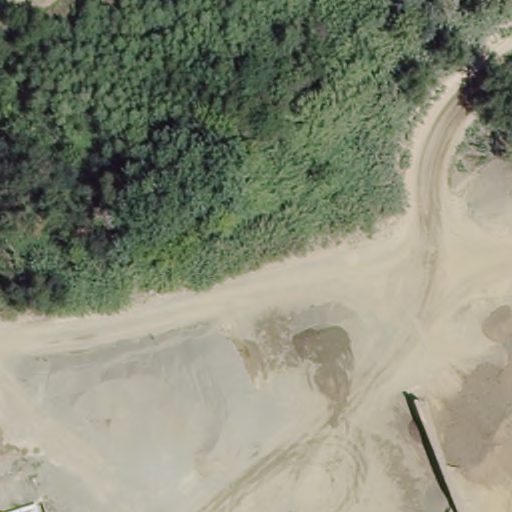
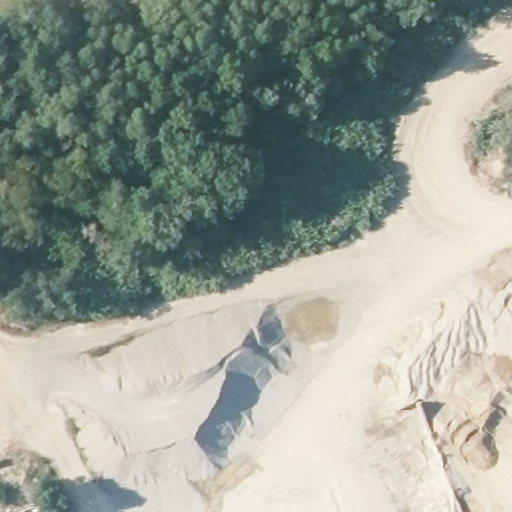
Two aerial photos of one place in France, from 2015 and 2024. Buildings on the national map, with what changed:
unchanged [(41,512),(7,512),(40,502),(41,512)]

